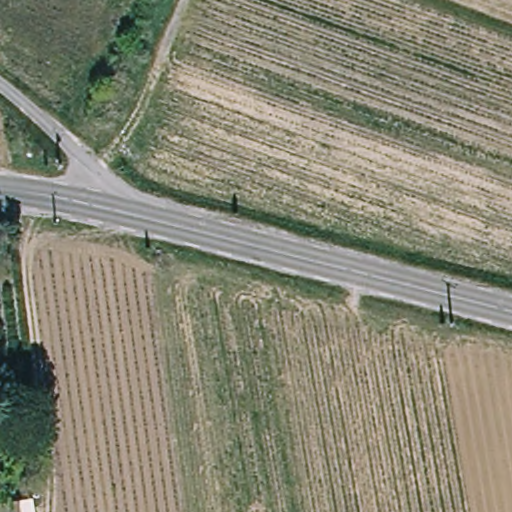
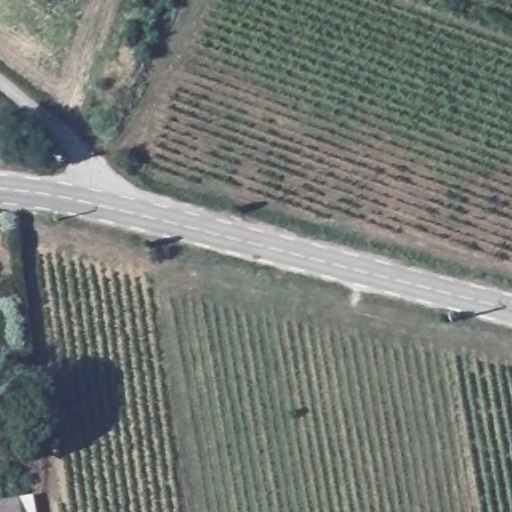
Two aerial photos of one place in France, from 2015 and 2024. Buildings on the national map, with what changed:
unchanged [(33,494),(36,512),(0,512),(0,499),(28,492),(33,494)]

